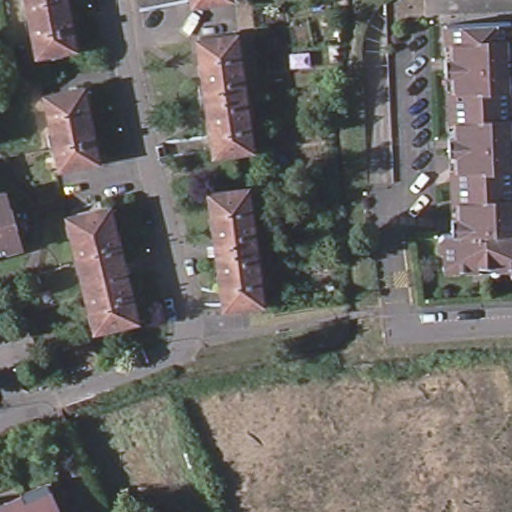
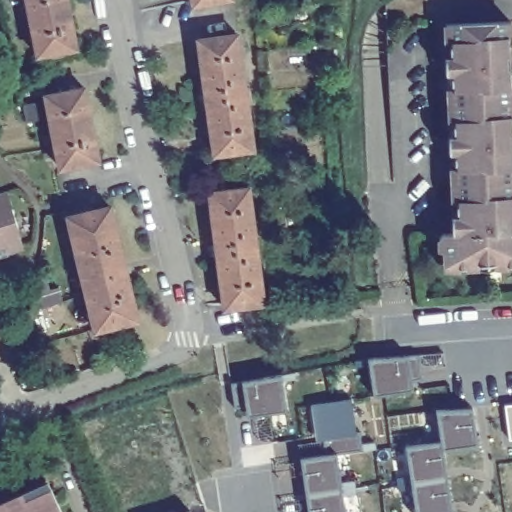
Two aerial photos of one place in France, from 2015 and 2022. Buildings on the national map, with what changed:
unchanged [(36,60),(23,0),(66,0),(75,55),(36,60)]
unchanged [(192,10),(190,0),(231,0),(231,1),(192,10)]
unchanged [(512,268),(444,268),(443,231),(457,231),(453,42),(441,42),(441,25),(509,22),(512,134),(512,268)]
unchanged [(193,38),(234,32),(259,150),(213,156),(193,38)]
unchanged [(88,84),(103,160),(58,170),(44,85),(88,84)]
unchanged [(253,181),(269,305),(222,308),(207,190),(253,181)]
unchanged [(8,186),(24,247),(0,255),(0,188),(8,186)]
unchanged [(113,201),(143,321),(93,332),(66,212),(113,201)]
new [(419,355),(422,378),(402,382),(403,391),(374,395),(366,358),(419,355)]
new [(279,375),(285,411),(254,415),(253,405),(234,408),(231,383),(279,375)]
new [(351,400),(356,432),(359,432),(362,452),(336,455),(345,512),(309,512),(306,493),(312,492),(310,482),(304,483),(301,458),(324,455),(321,425),(314,426),(311,404),(351,400)]
new [(504,405),(512,404),(512,440),(509,440),(504,405)]
new [(406,447),(439,443),(436,411),(472,408),(474,433),(468,435),(469,445),(443,450),(445,465),(439,465),(440,477),(446,476),(449,500),(443,501),(444,512),(414,512),(406,447)]
unchanged [(53,487),(64,512),(0,512),(0,506),(53,487)]
unchanged [(193,509),(193,512),(183,512),(193,509)]

